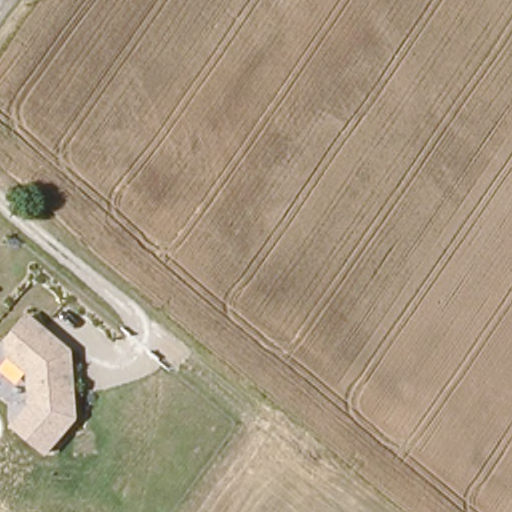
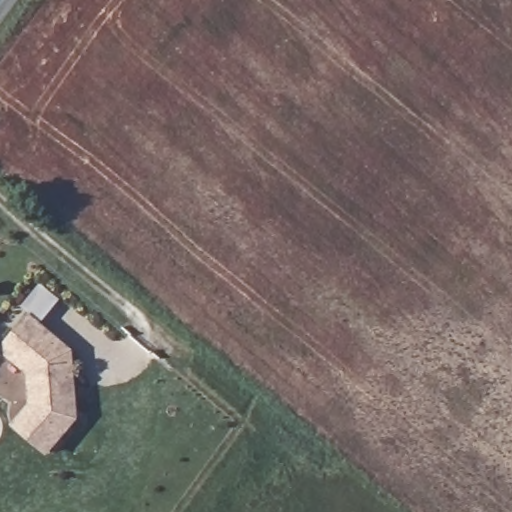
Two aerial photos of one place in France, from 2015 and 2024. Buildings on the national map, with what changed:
unchanged [(31,373),(11,352),(10,338),(33,314),(76,350),(78,400),(34,403),(31,373)]
unchanged [(78,400),(78,418),(49,454),(11,425),(34,403),(78,400)]

